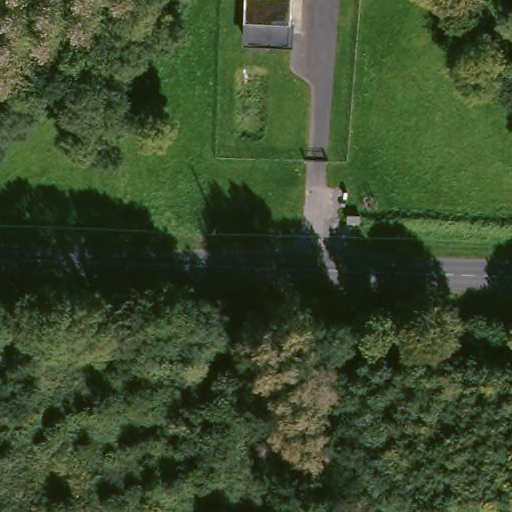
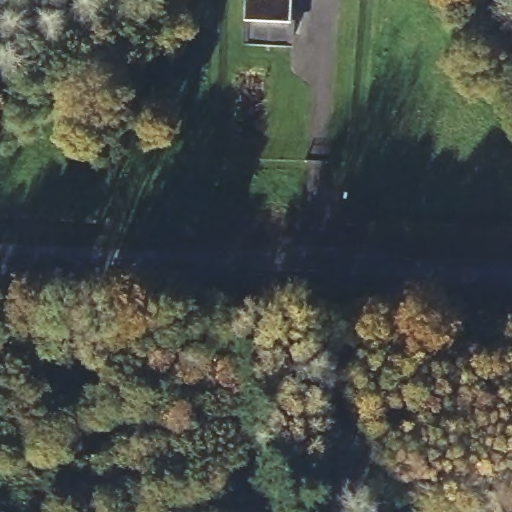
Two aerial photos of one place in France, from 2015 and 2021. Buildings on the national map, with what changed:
unchanged [(293,32),(242,29),(243,6),(293,7),(293,32)]

